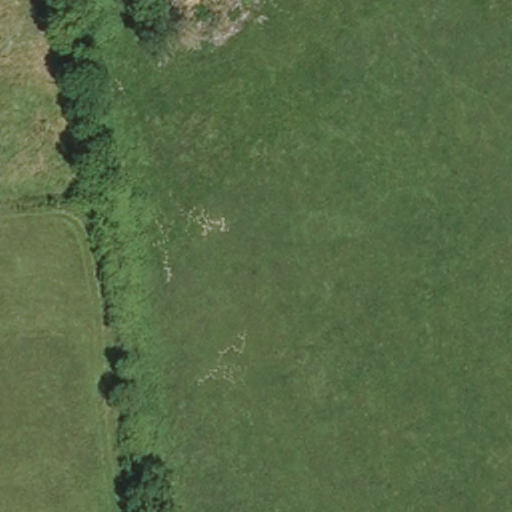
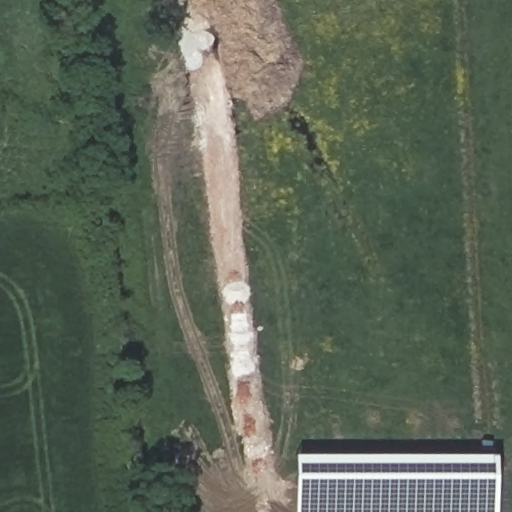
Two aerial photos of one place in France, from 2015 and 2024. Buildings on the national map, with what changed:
new [(496,454),(496,512),(296,512),(296,454),(496,454)]

